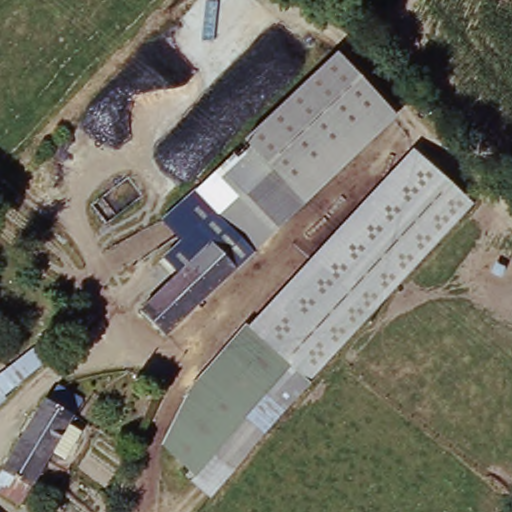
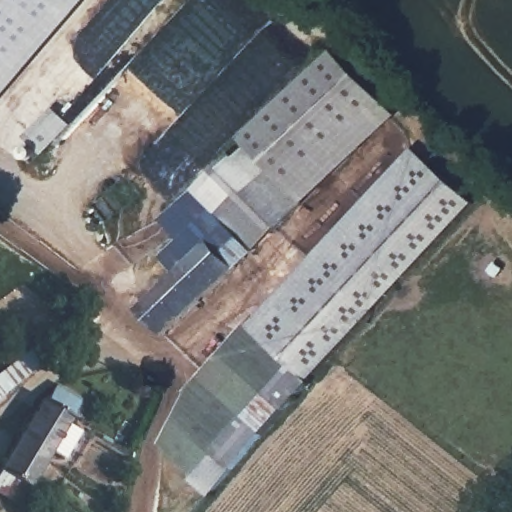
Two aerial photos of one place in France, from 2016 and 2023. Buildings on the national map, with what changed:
new [(0,0),(81,0),(0,94),(0,0)]
unchanged [(397,120),(331,177),(275,124),(339,59),(397,120)]
new [(31,161),(22,153),(20,150),(29,141),(25,134),(55,105),(61,112),(71,122),(31,161)]
unchanged [(264,178),(218,226),(197,206),(275,124),(331,177),(299,211),(264,178)]
unchanged [(474,201),(312,376),(214,500),(161,448),(187,389),(247,324),(251,326),(413,145),(474,201)]
unchanged [(230,237),(218,226),(264,178),(299,211),(254,259),(230,237)]
unchanged [(169,348),(144,325),(211,254),(212,255),(230,237),(254,259),(169,348)]
unchanged [(101,316),(0,405),(0,379),(89,308),(101,316)]
unchanged [(48,403),(57,388),(80,402),(66,427),(79,435),(62,463),(49,455),(18,507),(0,497),(0,473),(43,401),(48,403)]

